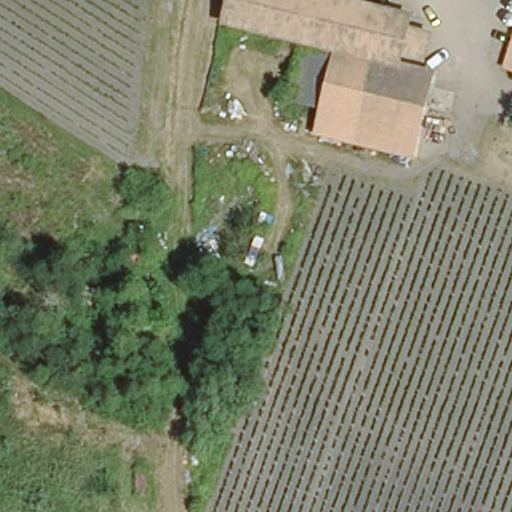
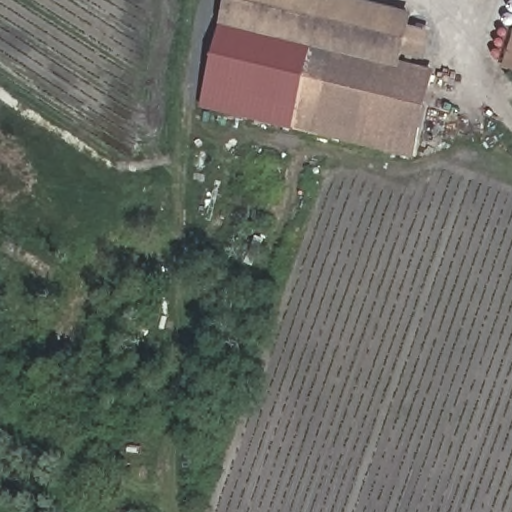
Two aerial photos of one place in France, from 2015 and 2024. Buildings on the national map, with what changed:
unchanged [(397,51),(395,62),(310,38),(223,14),(226,0),(363,0),(406,12),(405,21),(431,28),(423,58),(397,51)]
new [(200,109),(220,25),(223,14),(310,38),(292,101),(320,110),(315,136),(200,109)]
unchanged [(437,72),(415,161),(315,136),(320,110),(292,101),(310,38),(338,46),(395,62),(437,72)]
unchanged [(512,57),(512,68),(509,67),(512,57)]

